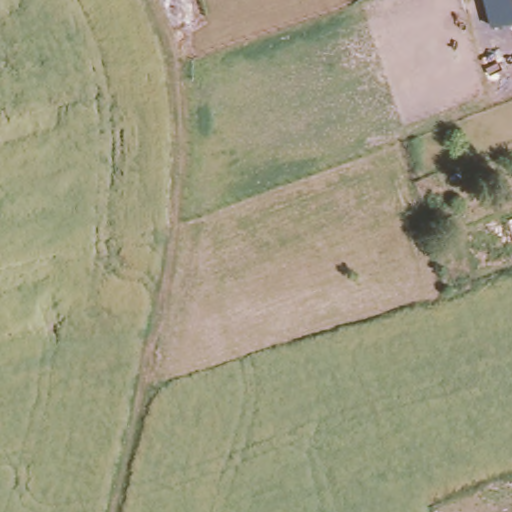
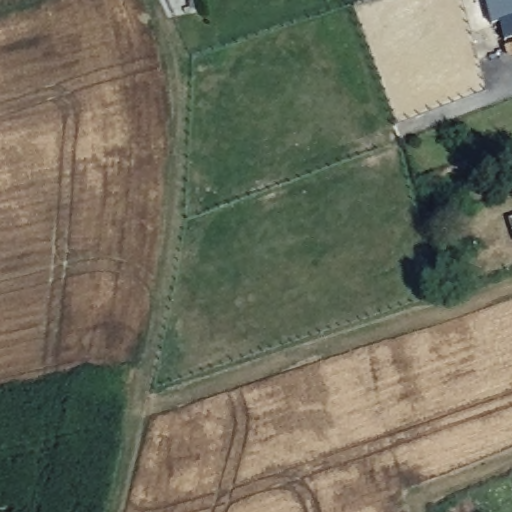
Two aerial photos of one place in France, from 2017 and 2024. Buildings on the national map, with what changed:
unchanged [(485,0),(512,0),(512,20),(492,26),(485,0)]

